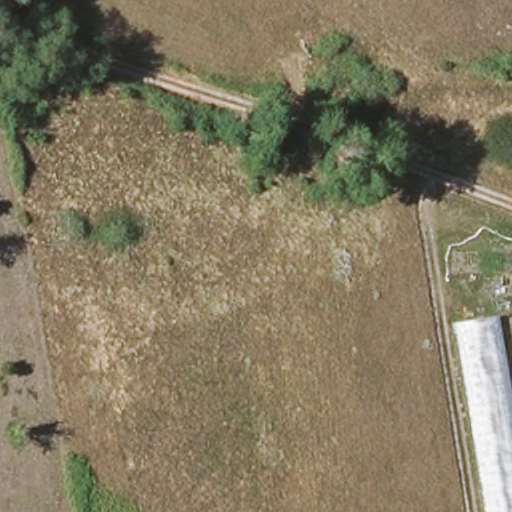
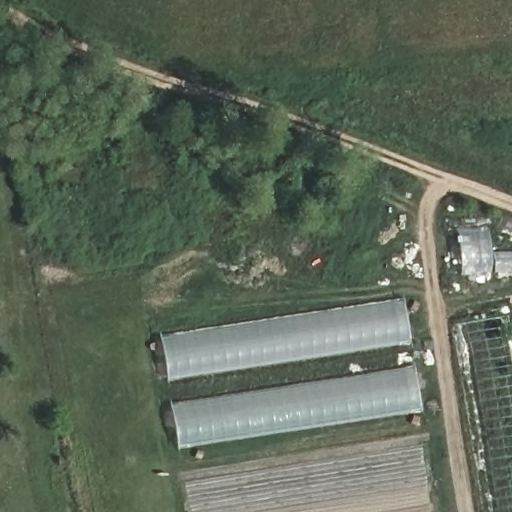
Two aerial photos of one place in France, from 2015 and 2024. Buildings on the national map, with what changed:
new [(165,378),(159,337),(402,299),(409,342),(165,378)]
new [(512,512),(485,512),(455,323),(498,316),(512,406),(512,512)]
new [(413,366),(421,410),(177,447),(170,404),(413,366)]

